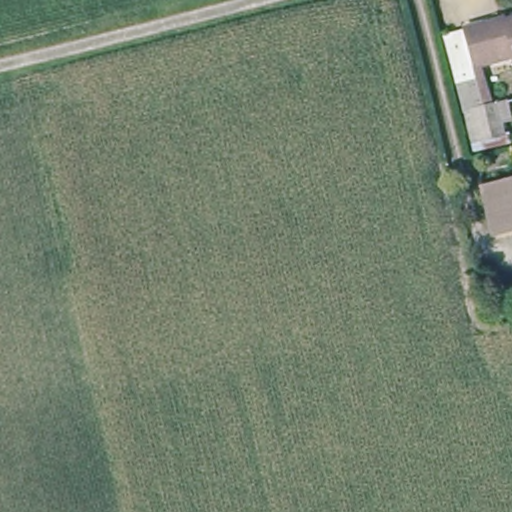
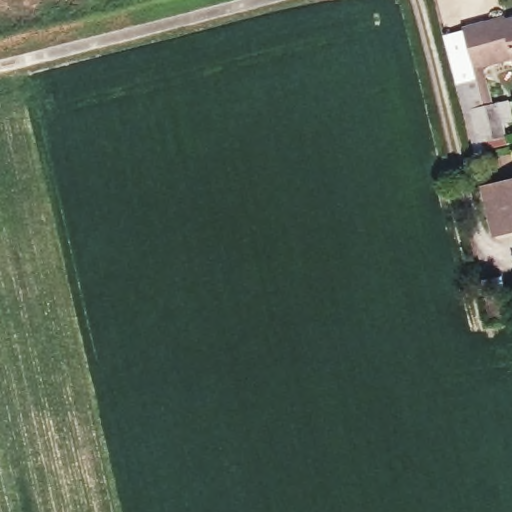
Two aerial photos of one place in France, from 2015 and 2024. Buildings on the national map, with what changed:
unchanged [(491,102),(509,99),(512,114),(512,122),(502,124),(510,144),(472,152),(442,34),(505,14),(505,19),(512,17),(512,59),(482,67),(491,102)]
unchanged [(512,231),(492,236),(480,184),(512,172),(512,231)]
unchanged [(490,317),(481,281),(501,276),(511,312),(490,317)]

